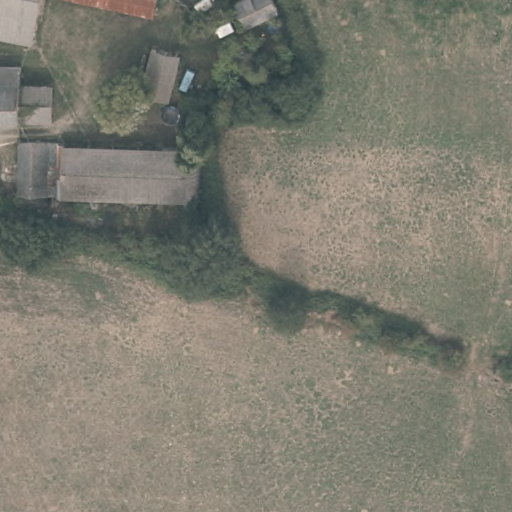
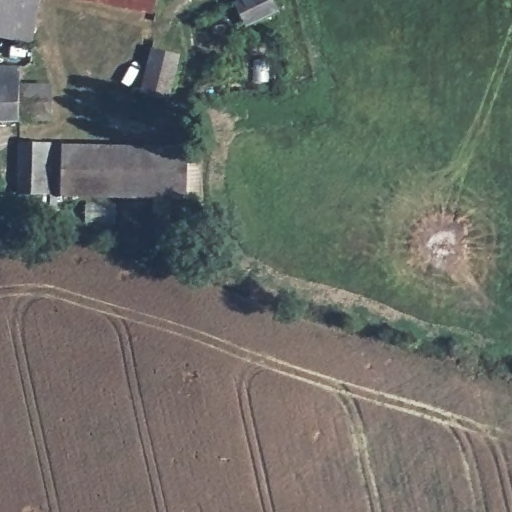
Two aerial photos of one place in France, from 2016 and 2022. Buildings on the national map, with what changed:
unchanged [(0,39),(0,0),(40,0),(30,46),(0,39)]
unchanged [(69,0),(153,0),(150,17),(69,0)]
unchanged [(242,33),(235,5),(251,0),(269,0),(276,22),(242,33)]
unchanged [(166,104),(142,101),(151,54),(176,59),(166,104)]
unchanged [(19,70),(19,87),(49,90),(46,127),(0,126),(0,69),(19,70)]
unchanged [(15,140),(56,140),(56,142),(57,197),(17,197),(15,140)]
unchanged [(57,197),(56,142),(182,152),(194,207),(57,197)]

